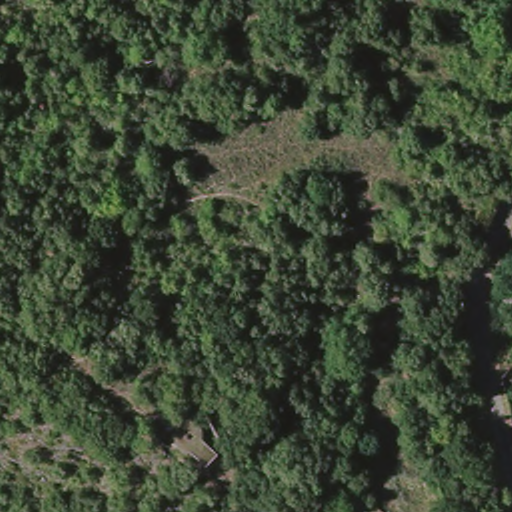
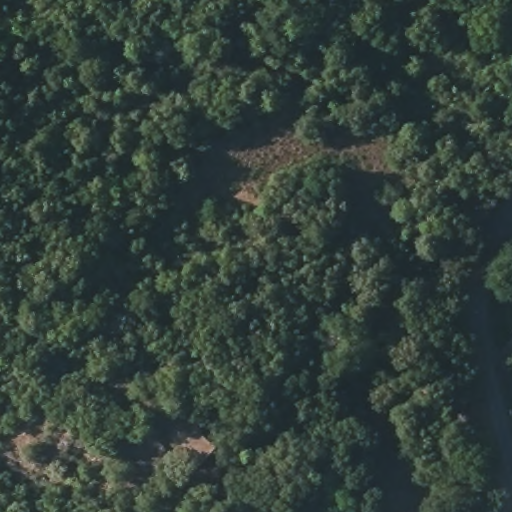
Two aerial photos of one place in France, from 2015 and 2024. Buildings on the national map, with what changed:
unchanged [(512,306),(507,304),(512,288),(512,306)]

